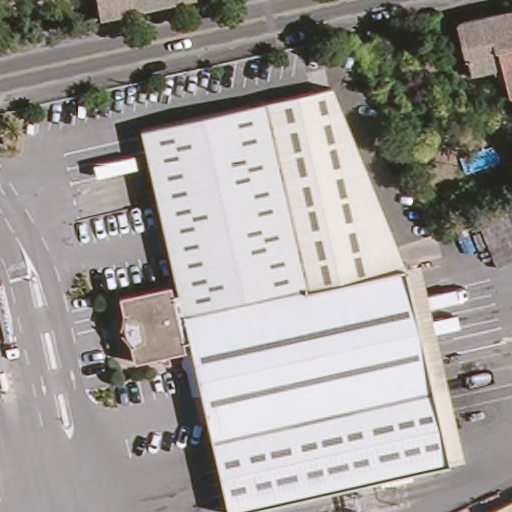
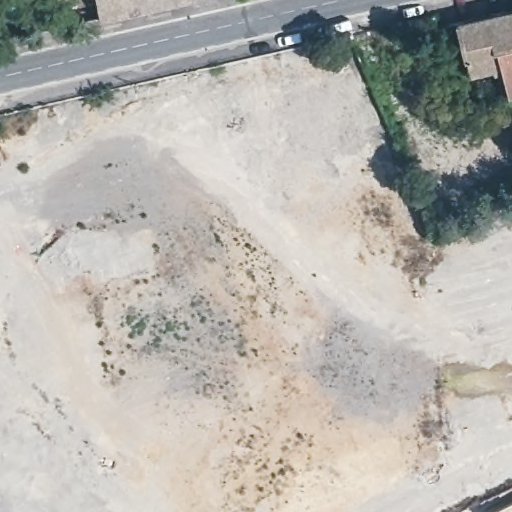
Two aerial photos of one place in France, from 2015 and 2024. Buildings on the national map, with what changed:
unchanged [(104,16),(101,0),(173,0),(104,16)]
unchanged [(504,9),(512,7),(512,40),(504,9)]
unchanged [(512,40),(512,92),(503,94),(495,65),(465,74),(452,22),(504,9),(512,40)]
demolished [(228,512),(190,343),(181,345),(183,354),(174,356),(176,366),(167,365),(165,358),(139,364),(135,346),(140,345),(131,332),(133,315),(129,316),(125,298),(170,289),(171,297),(180,295),(142,131),(332,90),(403,270),(446,462),(230,512),(228,512)]
unchanged [(488,512),(512,500),(512,512),(488,512)]

